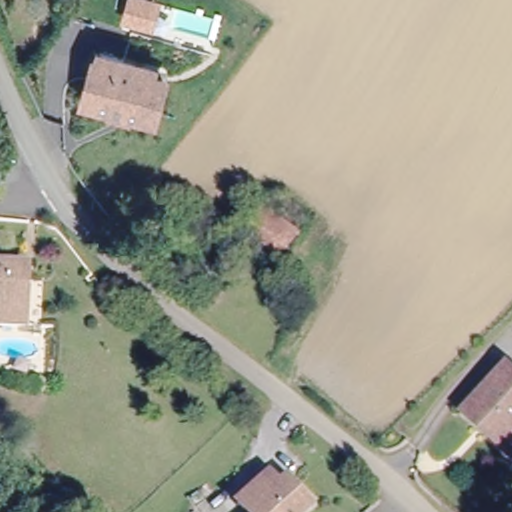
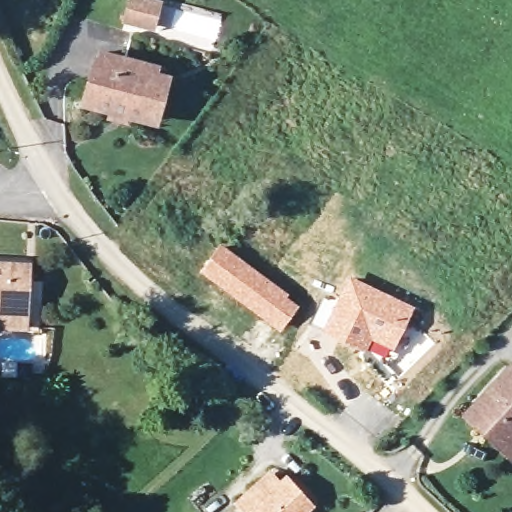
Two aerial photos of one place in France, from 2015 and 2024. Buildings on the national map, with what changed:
unchanged [(121,21),(126,0),(136,0),(147,3),(140,26),(121,21)]
unchanged [(107,119),(109,113),(80,105),(91,61),(95,62),(96,55),(152,70),(150,77),(160,80),(155,101),(149,124),(126,117),(125,124),(107,119)]
unchanged [(295,241),(275,267),(231,232),(260,197),(305,229),(295,241)]
new [(220,242),(273,282),(299,305),(278,331),(198,271),(220,242)]
unchanged [(0,262),(20,265),(15,305),(14,320),(0,318),(0,262)]
new [(320,317),(323,313),(327,315),(348,275),(413,307),(385,359),(366,350),(365,353),(311,325),(320,317)]
unchanged [(498,464),(486,452),(450,416),(494,372),(512,389),(512,449),(498,464)]
unchanged [(240,507),(272,477),(278,471),(290,484),(313,508),(310,512),(245,512),(240,507)]

